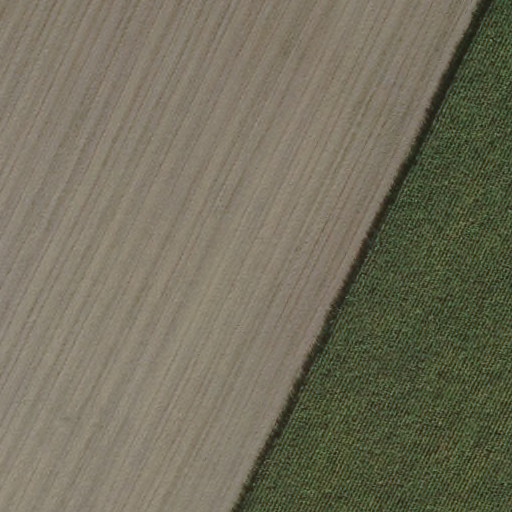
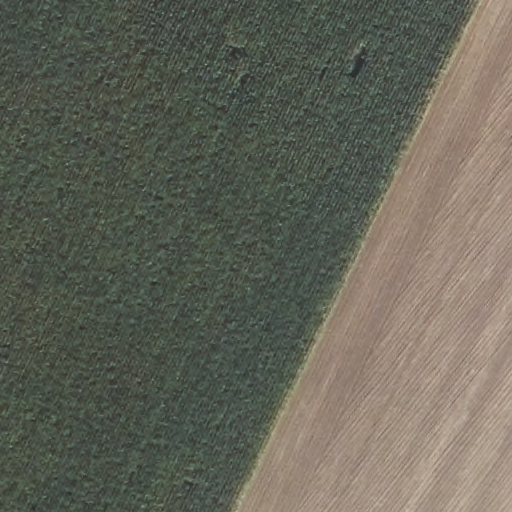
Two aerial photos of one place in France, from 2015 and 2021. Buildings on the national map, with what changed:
[]

